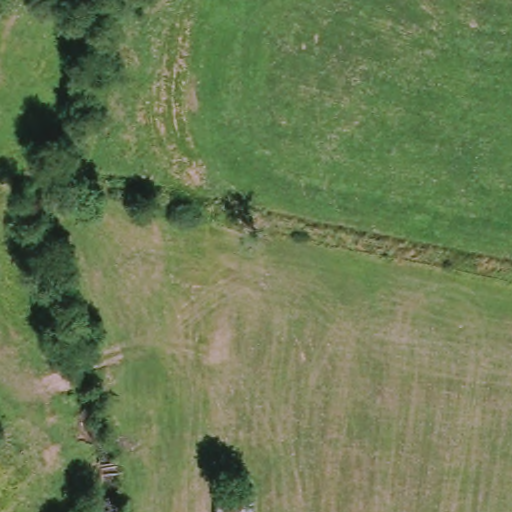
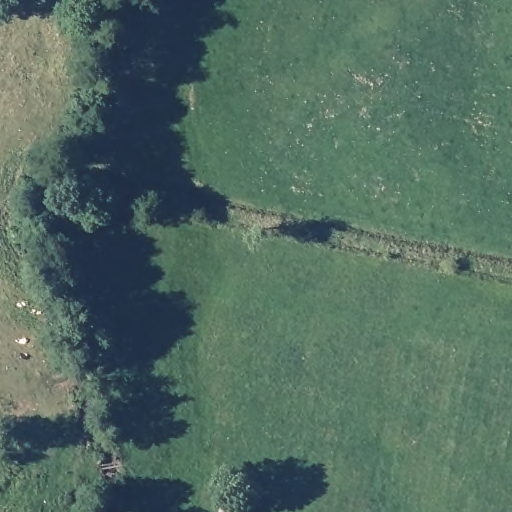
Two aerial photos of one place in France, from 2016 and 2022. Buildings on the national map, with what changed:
unchanged [(230,492),(247,493),(247,504),(246,512),(221,512),(222,502),(230,503),(230,492)]

